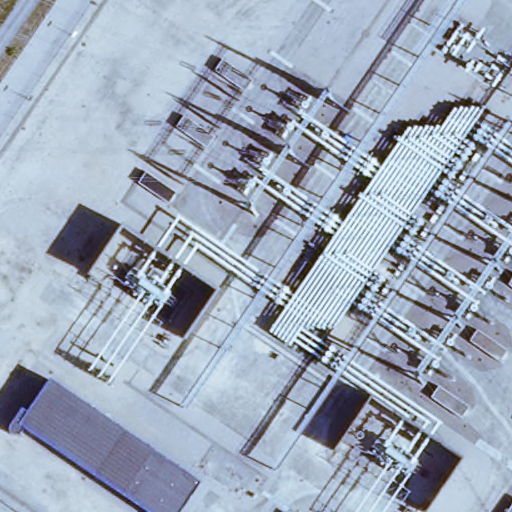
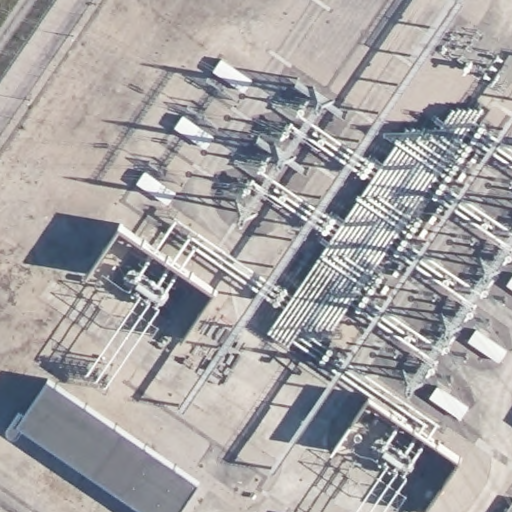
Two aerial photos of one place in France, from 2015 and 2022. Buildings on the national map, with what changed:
unchanged [(412,119),(446,117),(456,102),(489,106),(332,328),(310,325),(297,337),(277,327),(412,119)]
unchanged [(184,508),(189,512),(154,512),(26,428),(20,435),(10,433),(6,424),(20,402),(31,407),(53,375),(205,476),(184,508)]
unchanged [(504,512),(512,500),(512,512),(504,512)]

